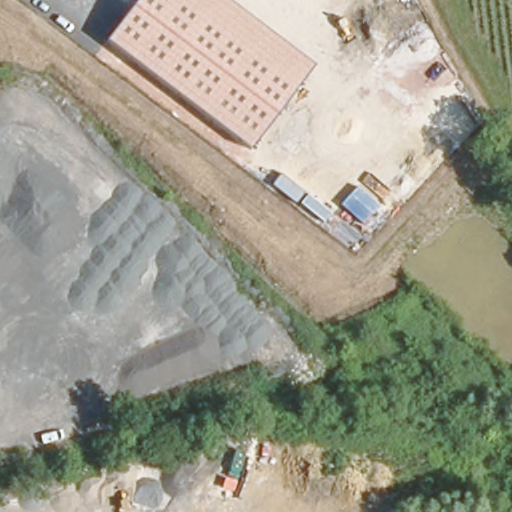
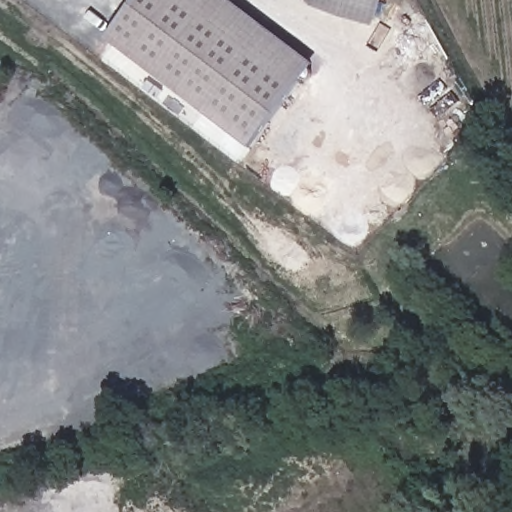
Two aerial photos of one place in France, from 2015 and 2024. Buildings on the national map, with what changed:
unchanged [(250,149),(107,41),(139,0),(230,0),(316,65),(250,149)]
new [(375,24),(310,2),(311,0),(383,0),(375,24)]

